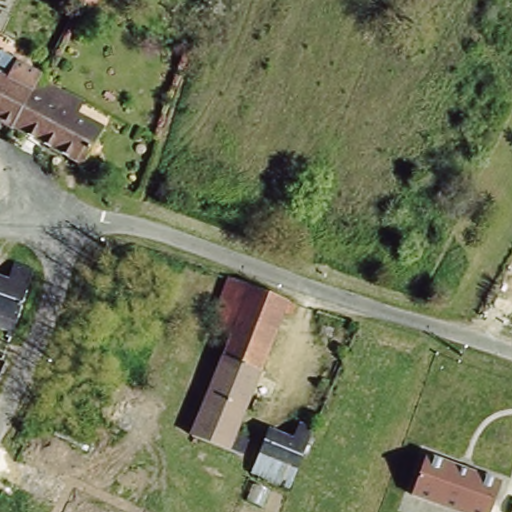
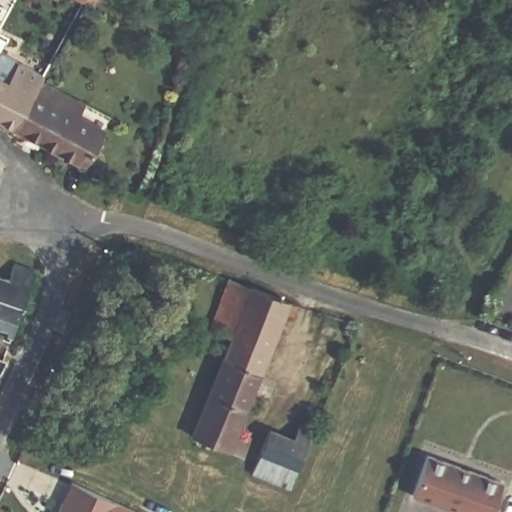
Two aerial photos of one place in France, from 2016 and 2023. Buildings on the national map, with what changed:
new [(79,0),(108,0),(102,11),(79,0)]
unchanged [(1,52),(0,54),(0,51),(1,52)]
unchanged [(31,87),(11,122),(0,116),(0,70),(31,87)]
unchanged [(83,160),(11,122),(31,87),(38,74),(56,84),(81,97),(75,109),(102,125),(83,160)]
unchanged [(11,285),(16,268),(37,276),(16,343),(11,341),(12,336),(0,332),(0,323),(0,281),(11,285)]
unchanged [(210,326),(229,276),(251,284),(231,335),(210,326)]
unchanged [(288,300),(298,303),(293,314),(285,310),(233,439),(246,445),(240,460),(190,440),(231,335),(251,284),(288,300)]
unchanged [(253,470),(271,427),(293,436),(300,421),(315,427),(291,486),(253,470)]
unchanged [(425,448),(498,474),(486,512),(462,512),(410,492),(425,448)]
new [(72,482),(141,512),(59,512),(72,482)]

